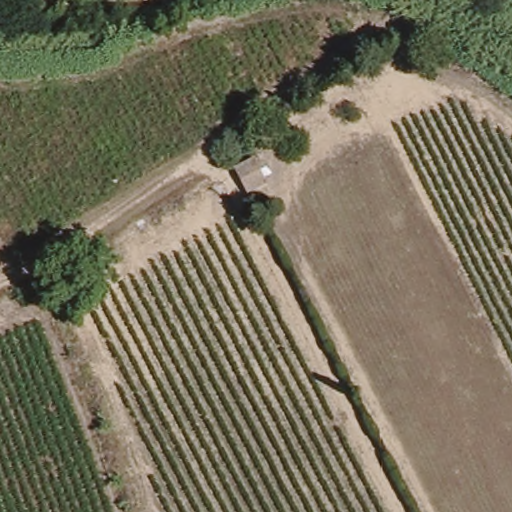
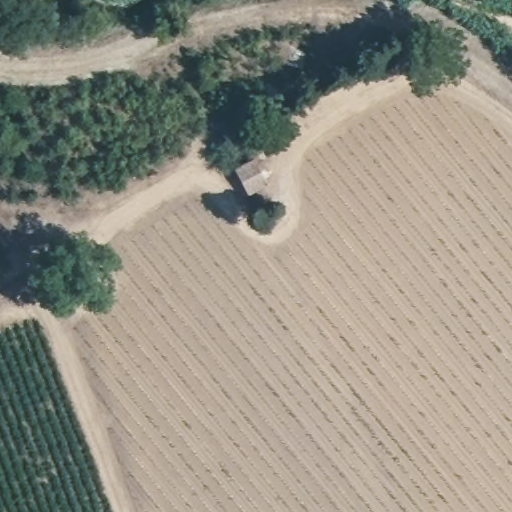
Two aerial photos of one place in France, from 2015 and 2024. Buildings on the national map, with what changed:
unchanged [(237,166),(257,155),(271,182),(252,192),(237,166)]

